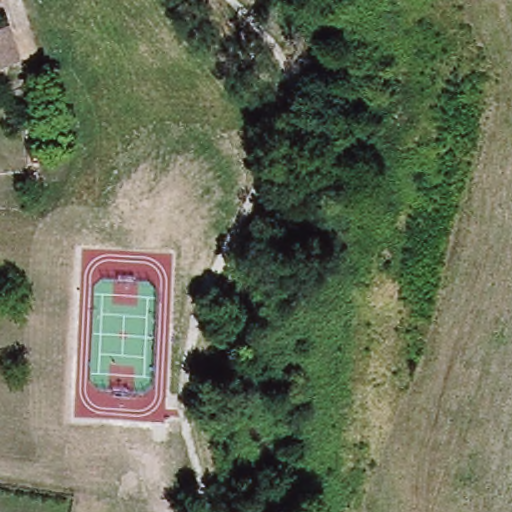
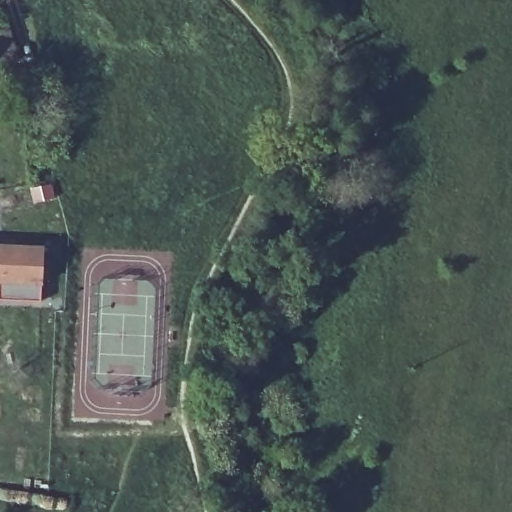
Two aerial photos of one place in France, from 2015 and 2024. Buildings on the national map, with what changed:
unchanged [(5,27),(11,45),(16,62),(0,68),(0,29),(5,27)]
new [(44,247),(41,301),(27,301),(0,299),(0,245),(44,247)]

